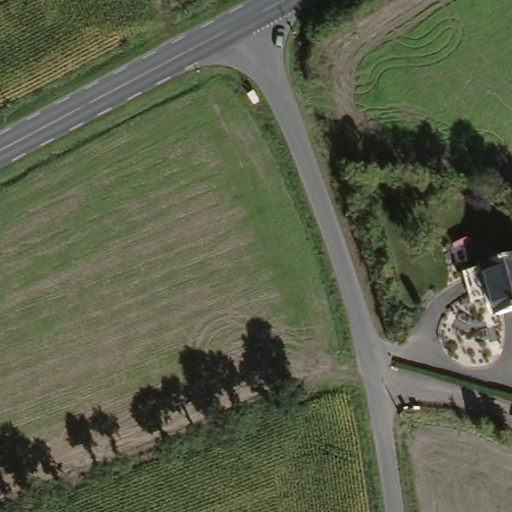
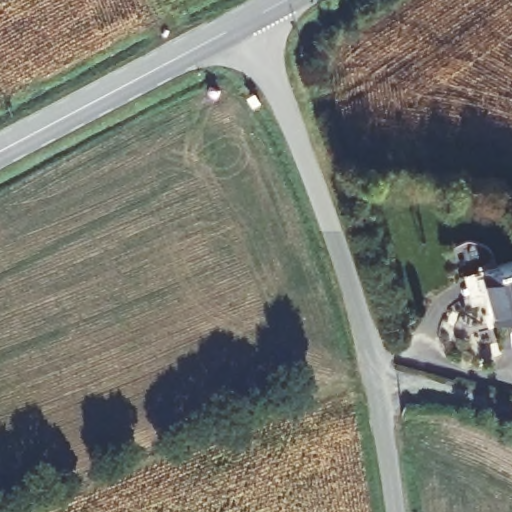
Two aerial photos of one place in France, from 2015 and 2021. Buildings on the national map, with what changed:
unchanged [(496,317),(483,269),(512,261),(512,312),(496,317)]

